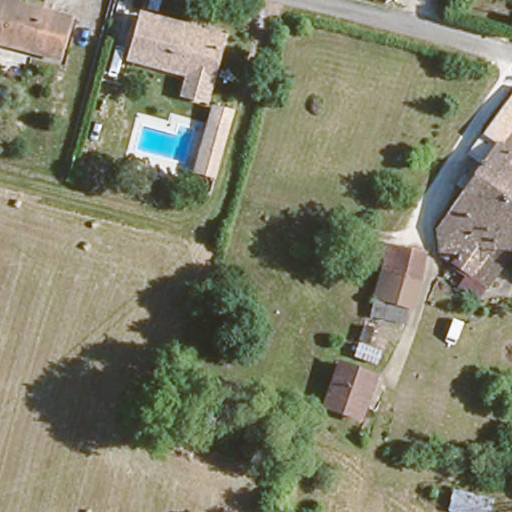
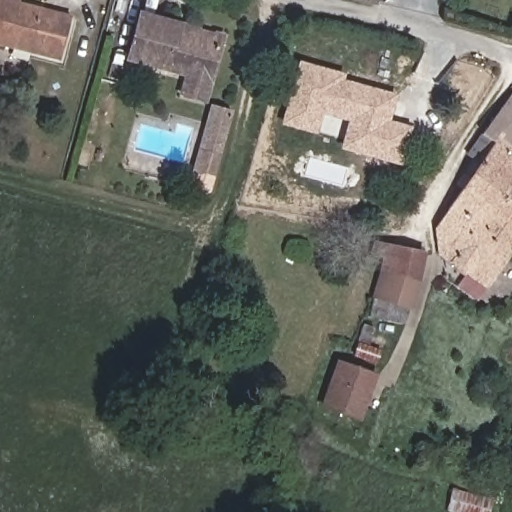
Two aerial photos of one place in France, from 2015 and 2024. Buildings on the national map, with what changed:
unchanged [(67,48),(0,33),(0,0),(50,0),(77,6),(67,48)]
unchanged [(180,17),(176,27),(183,29),(189,25),(220,34),(210,75),(129,50),(141,7),(180,17)]
new [(214,77),(207,104),(177,97),(182,77),(125,62),(129,50),(210,75),(214,77)]
new [(345,74),(343,80),(397,94),(390,121),(412,127),(402,166),(340,149),(347,122),(322,115),(317,134),(280,125),(298,61),(345,74)]
unchanged [(450,232),(437,223),(449,206),(461,187),(490,142),(479,134),(495,110),(511,87),(512,88),(512,245),(510,247),(486,283),(438,250),(450,232)]
new [(206,170),(203,179),(190,175),(213,105),(235,112),(215,172),(206,170)]
unchanged [(412,309),(374,296),(382,263),(373,262),(378,244),(387,247),(425,260),(412,309)]
unchanged [(386,351),(381,367),(353,359),(361,342),(386,351)]
unchanged [(377,380),(363,422),(325,410),(338,368),(377,380)]

